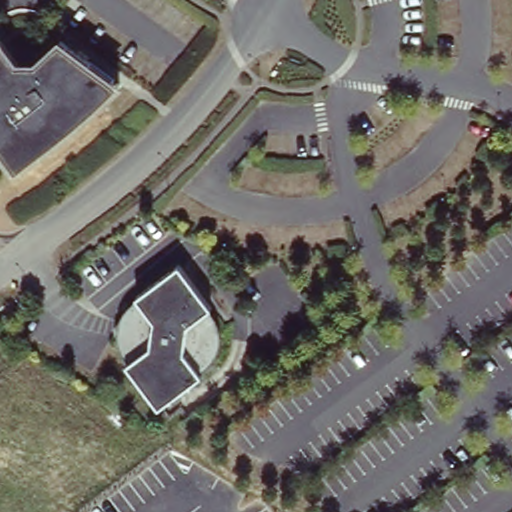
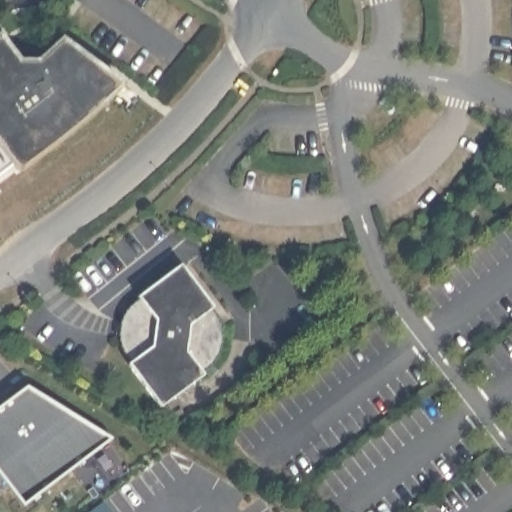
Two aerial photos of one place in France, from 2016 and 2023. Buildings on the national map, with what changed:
unchanged [(35,66),(58,38),(119,82),(62,142),(17,176),(8,164),(0,153),(0,44),(14,62),(35,66)]
new [(0,170),(0,153),(8,164),(0,170)]
unchanged [(209,308),(214,323),(217,332),(215,347),(209,360),(196,376),(158,407),(128,364),(122,353),(119,343),(120,329),(127,315),(141,304),(131,298),(175,268),(209,308)]
new [(121,433),(31,504),(0,468),(0,410),(29,387),(121,433)]

